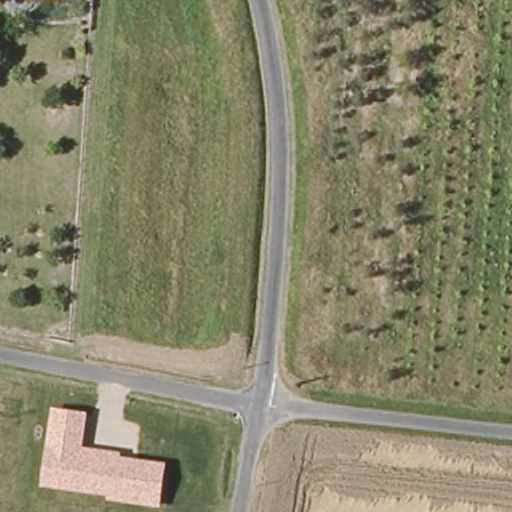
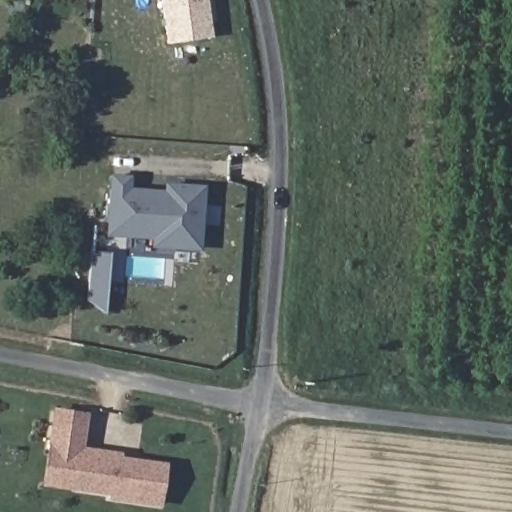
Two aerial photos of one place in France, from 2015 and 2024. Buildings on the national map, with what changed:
new [(161,0),(207,0),(213,37),(167,44),(161,0)]
new [(166,184),(203,186),(199,250),(153,248),(150,239),(104,236),(110,181),(165,192),(166,184)]
unchanged [(160,507),(106,500),(108,496),(41,486),(51,408),(88,412),(83,446),(122,452),(121,456),(166,462),(160,507)]

